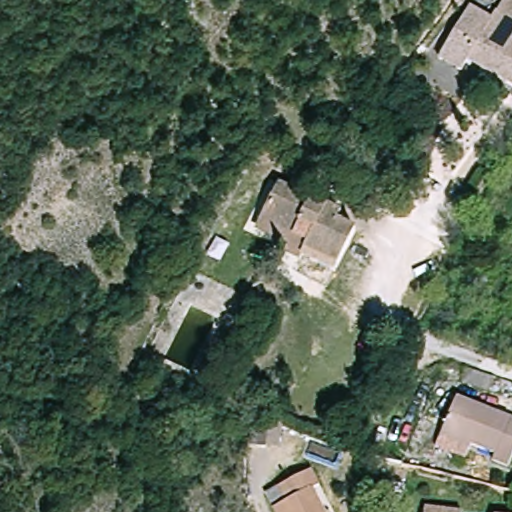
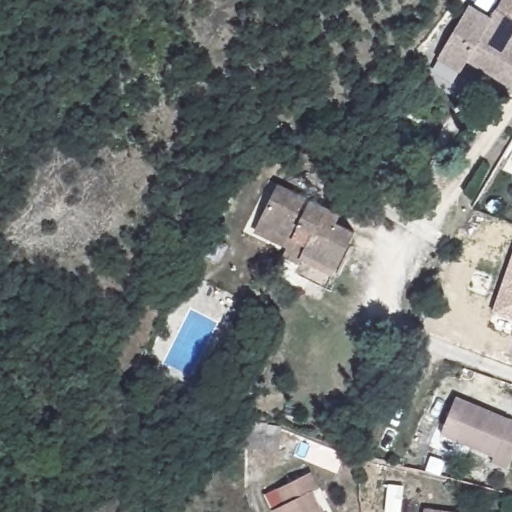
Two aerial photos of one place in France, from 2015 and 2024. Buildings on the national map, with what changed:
unchanged [(512,92),(511,92),(465,66),(459,77),(437,65),(467,11),(488,23),(494,15),(503,0),(512,0),(512,46),(511,47),(512,48),(512,92)]
unchanged [(307,254),(304,258),(288,251),(292,242),(260,227),(283,181),(344,211),(340,219),(359,227),(338,270),(307,254)]
new [(512,318),(495,312),(512,260),(512,318)]
unchanged [(492,457),(470,447),(464,462),(435,450),(455,399),(512,422),(512,458),(507,469),(491,462),(492,457)]
unchanged [(248,426),(266,426),(264,450),(247,450),(248,435),(248,426)]
unchanged [(270,497),(315,473),(323,490),(317,493),(326,512),(278,512),(270,497)]
unchanged [(400,487),(397,512),(382,512),(385,485),(400,487)]
unchanged [(425,506),(460,512),(425,512),(425,506)]

